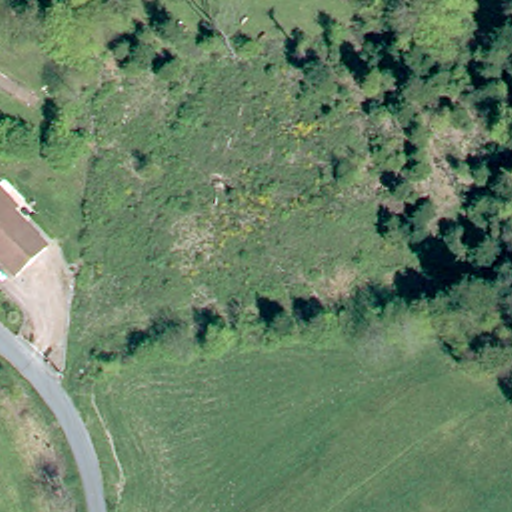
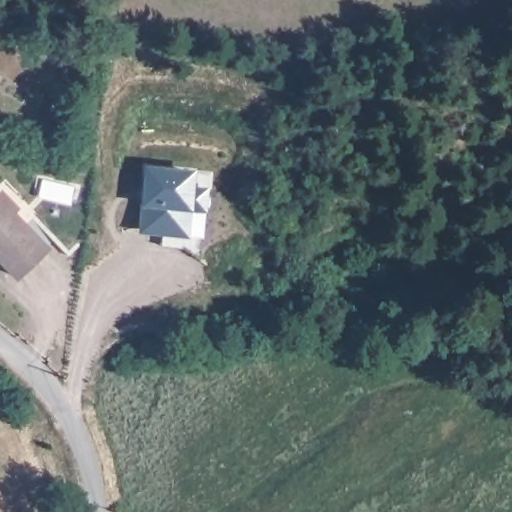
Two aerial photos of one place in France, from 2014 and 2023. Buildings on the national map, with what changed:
new [(142,227),(148,167),(191,171),(190,188),(205,190),(204,207),(188,205),(185,232),(184,246),(162,245),(163,230),(142,227)]
unchanged [(10,214),(45,248),(17,277),(0,261),(0,196),(14,210),(10,214)]

